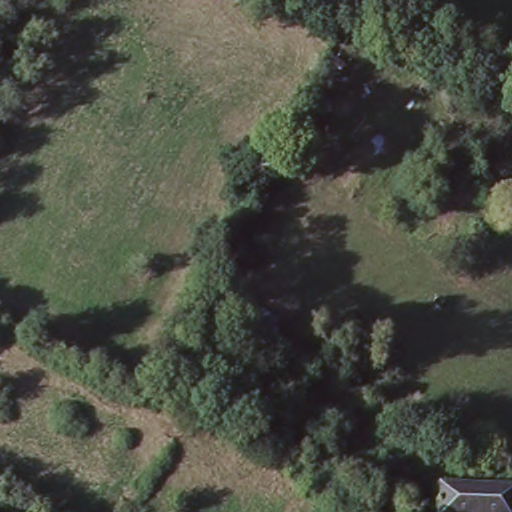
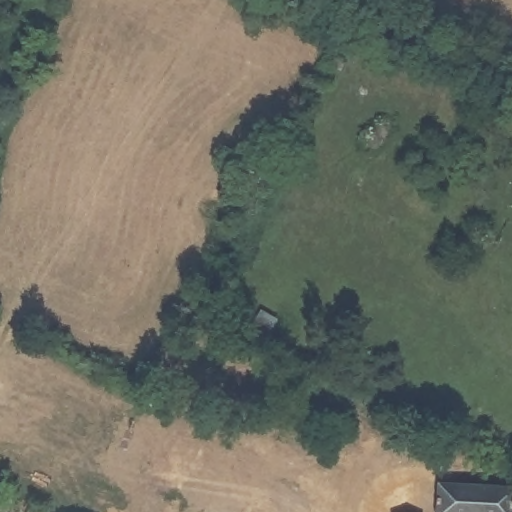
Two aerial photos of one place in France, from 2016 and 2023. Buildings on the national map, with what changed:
unchanged [(512,512),(441,512),(441,488),(512,490),(512,512)]
unchanged [(396,512),(396,511),(416,512),(396,512)]

